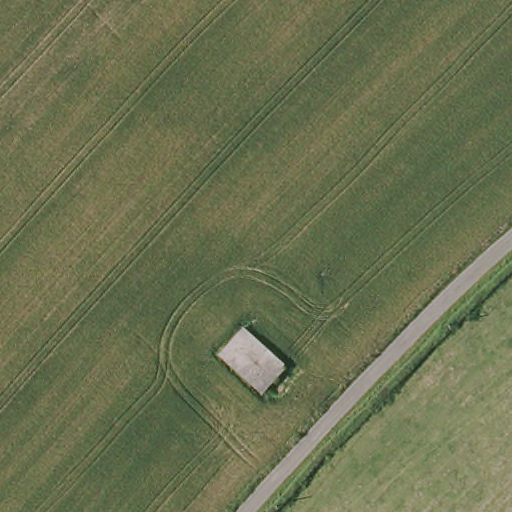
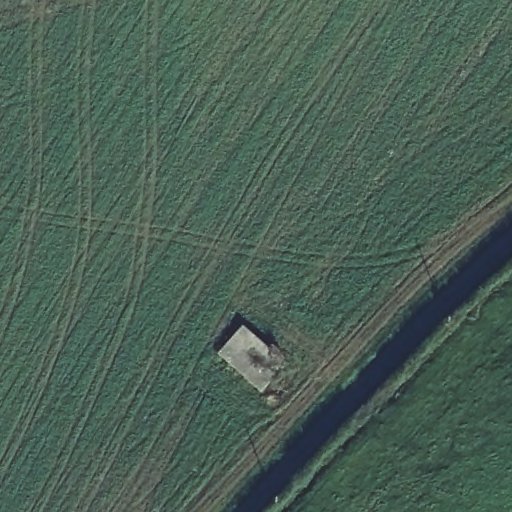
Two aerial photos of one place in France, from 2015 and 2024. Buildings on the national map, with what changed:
unchanged [(243,327),(286,363),(258,391),(217,358),(243,327)]

